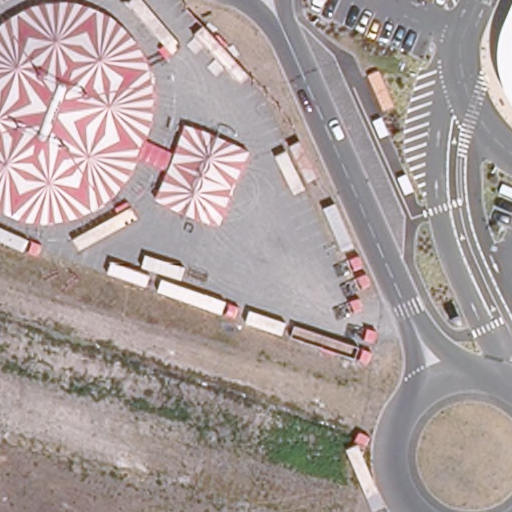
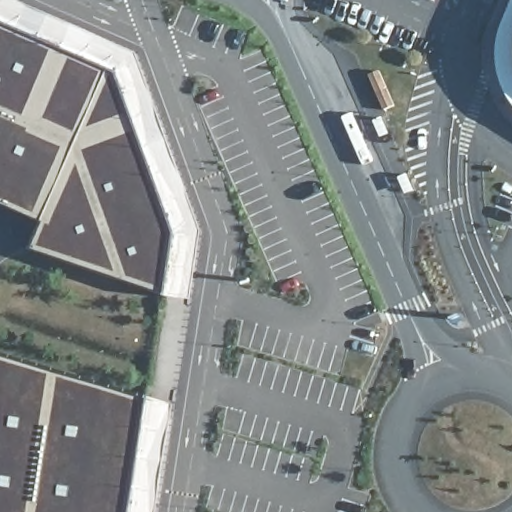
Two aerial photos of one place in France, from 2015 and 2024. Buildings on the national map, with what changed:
unchanged [(501,81),(498,66),(497,50),(499,39),(503,26),(512,4),(512,106),(506,95),(501,81)]
new [(179,236),(168,297),(32,251),(43,224),(0,205),(0,21),(118,72),(179,236)]
new [(151,400),(133,512),(0,512),(0,354),(151,400)]

